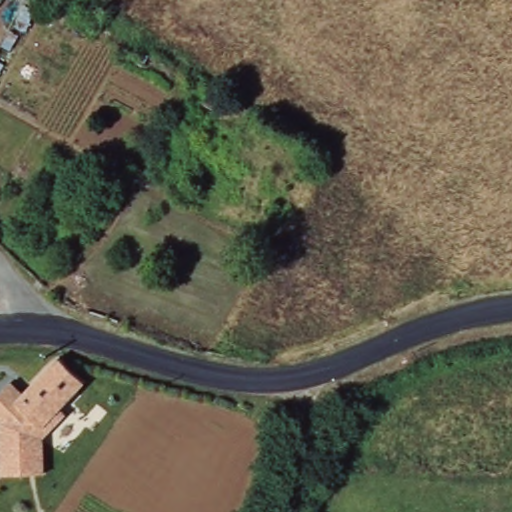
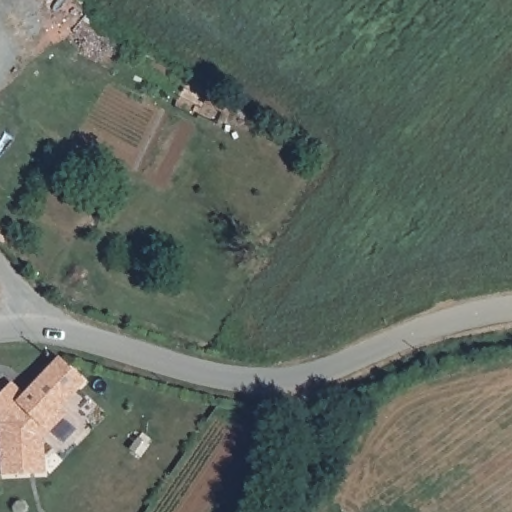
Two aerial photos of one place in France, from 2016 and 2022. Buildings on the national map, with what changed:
unchanged [(33,13),(24,9),(28,0),(29,0),(37,4),(33,13)]
unchanged [(83,379),(44,424),(32,437),(29,433),(21,425),(20,422),(21,418),(27,411),(17,402),(22,395),(59,356),(83,379)]
unchanged [(2,473),(1,423),(0,422),(0,394),(10,384),(22,395),(17,402),(27,411),(21,418),(20,422),(21,425),(29,433),(32,437),(44,424),(42,473),(2,473)]

